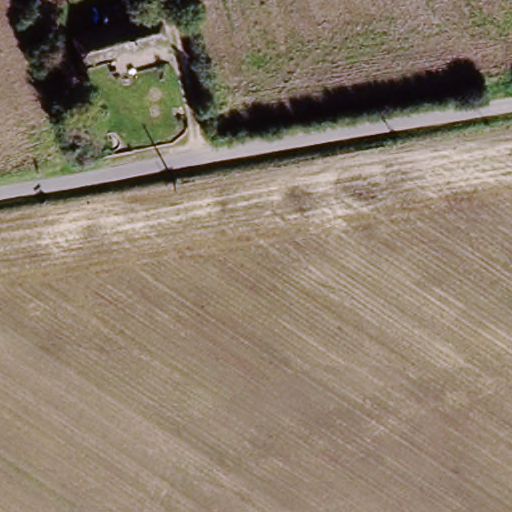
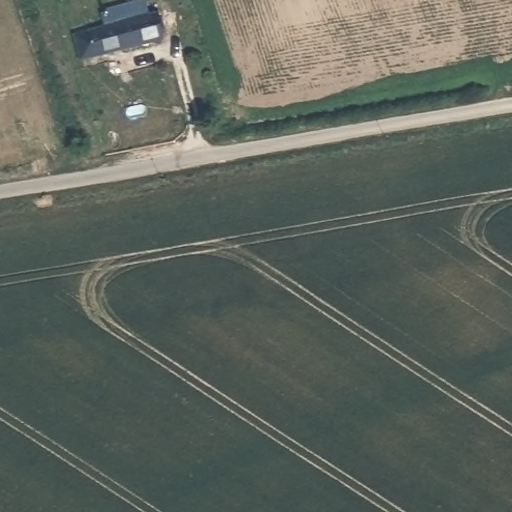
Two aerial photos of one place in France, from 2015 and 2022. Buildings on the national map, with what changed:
unchanged [(79,53),(72,27),(157,9),(164,36),(79,53)]

